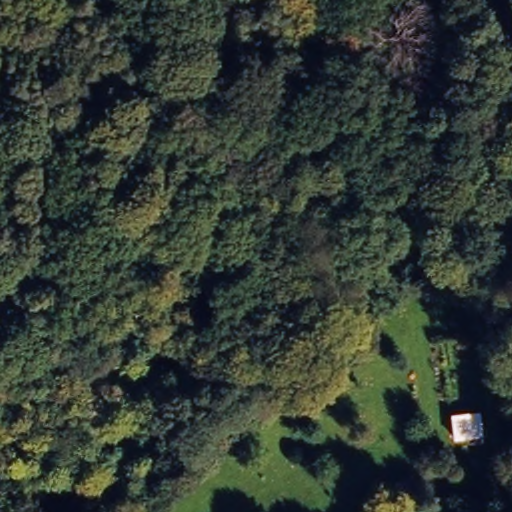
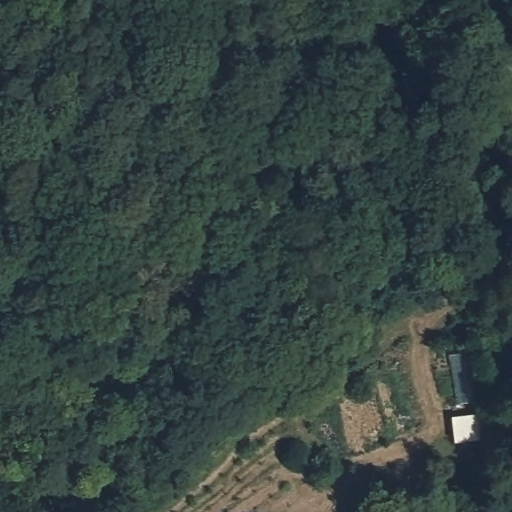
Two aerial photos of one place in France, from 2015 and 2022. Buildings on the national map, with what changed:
unchanged [(479,410),(482,438),(457,441),(454,414),(479,410)]

